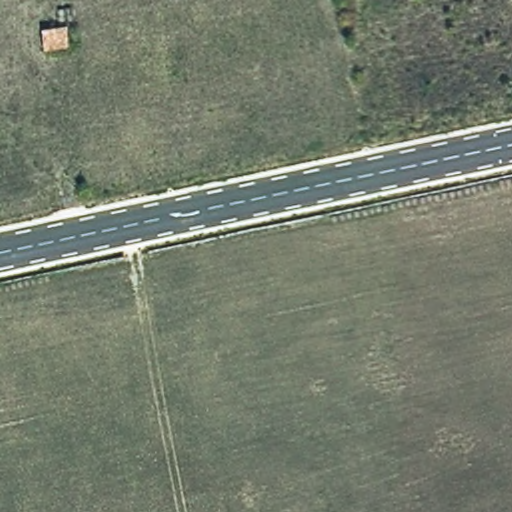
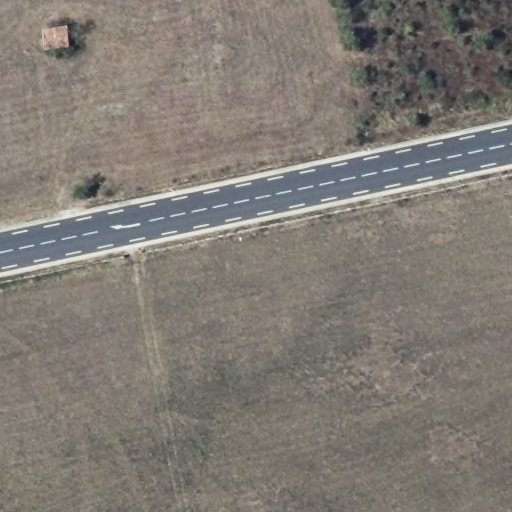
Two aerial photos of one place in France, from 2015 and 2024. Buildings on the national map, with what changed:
unchanged [(40,28),(67,22),(71,41),(44,50),(40,28)]

